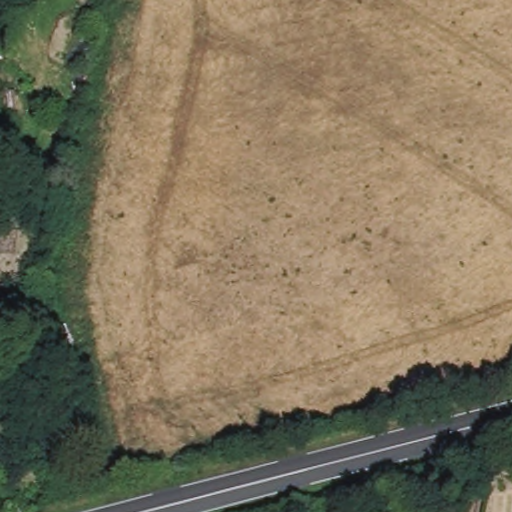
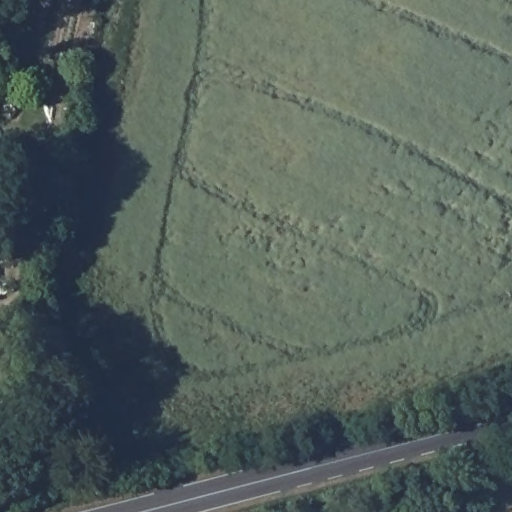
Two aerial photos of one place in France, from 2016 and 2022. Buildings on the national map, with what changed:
[]

